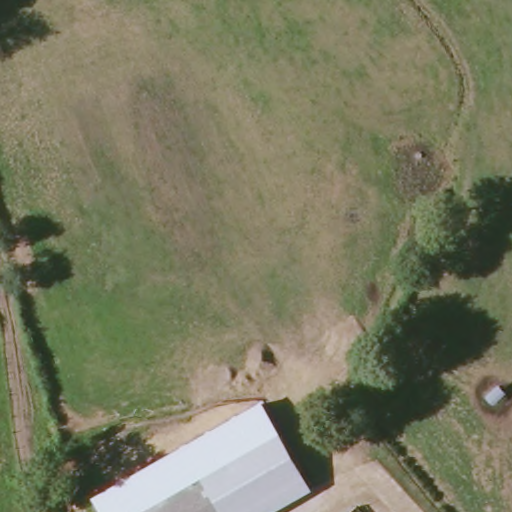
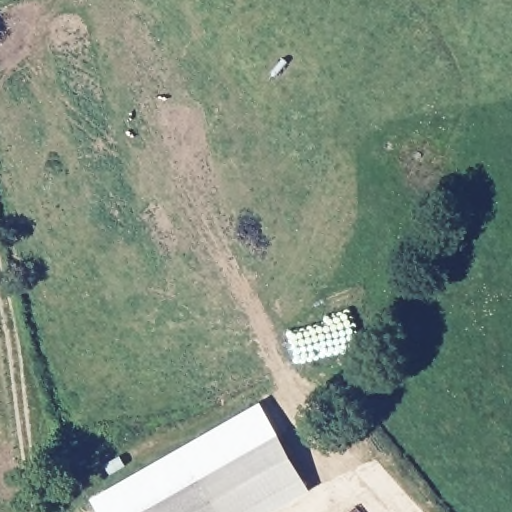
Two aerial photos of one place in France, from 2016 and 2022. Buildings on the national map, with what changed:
unchanged [(275,433),(306,487),(262,512),(218,512),(197,476),(275,433)]
unchanged [(218,512),(133,512),(197,476),(218,512)]

